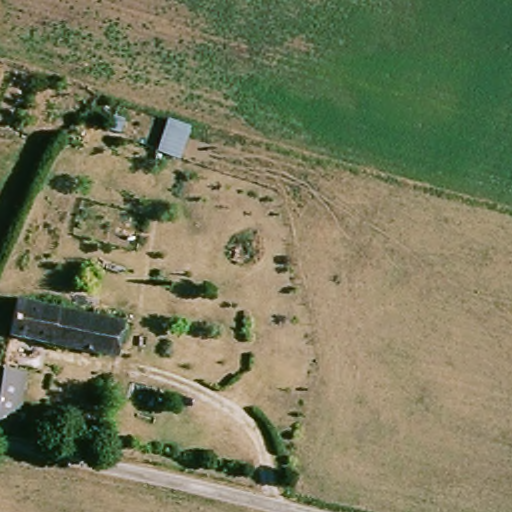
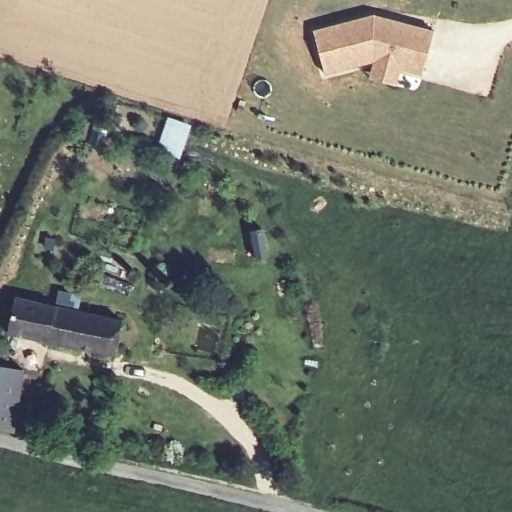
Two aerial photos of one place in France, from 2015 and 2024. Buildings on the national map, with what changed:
new [(329,77),(318,33),(378,17),(438,31),(427,75),(404,69),(400,86),(374,80),(379,63),(329,77)]
unchanged [(15,337),(21,297),(126,320),(121,358),(15,337)]
unchanged [(0,428),(0,402),(5,368),(29,373),(21,434),(0,428)]

